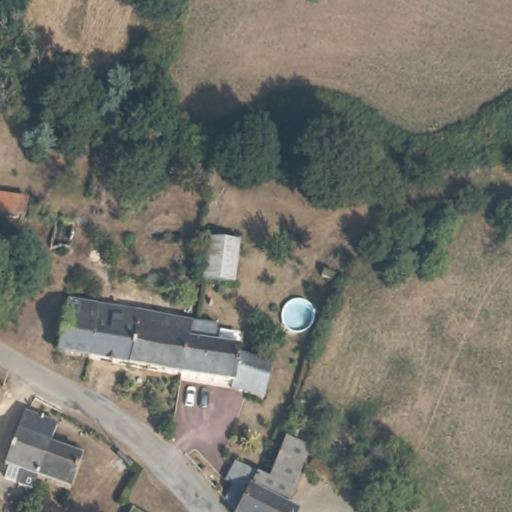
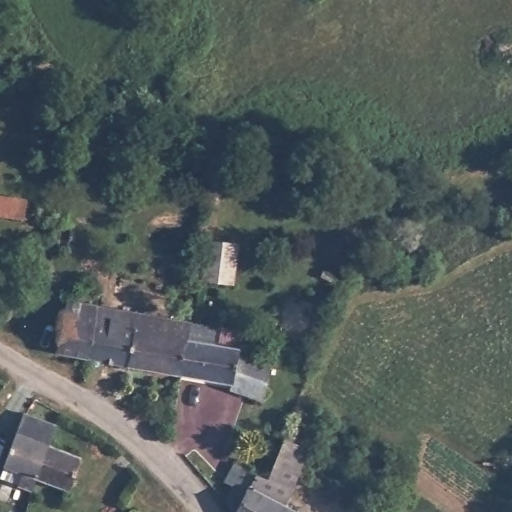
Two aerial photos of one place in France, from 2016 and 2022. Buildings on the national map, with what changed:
unchanged [(26,203),(23,223),(0,220),(0,200),(26,203)]
unchanged [(237,249),(231,290),(200,284),(207,244),(237,249)]
unchanged [(98,308),(87,361),(58,355),(68,302),(98,308)]
unchanged [(136,316),(126,369),(87,361),(98,308),(136,316)]
unchanged [(192,327),(181,380),(126,369),(136,316),(192,327)]
unchanged [(215,332),(211,349),(240,355),(239,362),(271,369),(263,402),(232,395),(233,390),(181,380),(192,327),(215,332)]
unchanged [(46,447),(34,480),(32,493),(16,488),(19,475),(2,469),(20,416),(53,427),(46,447)]
unchanged [(283,512),(227,512),(220,505),(228,490),(221,487),(230,469),(252,480),(264,486),(284,446),(307,458),(283,512)]
unchanged [(78,459),(66,493),(34,480),(46,447),(78,459)]

